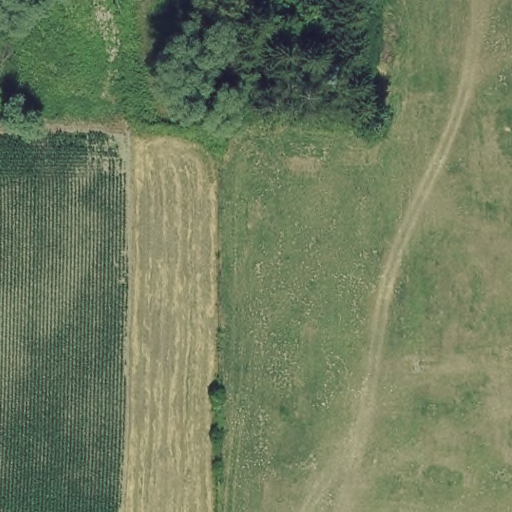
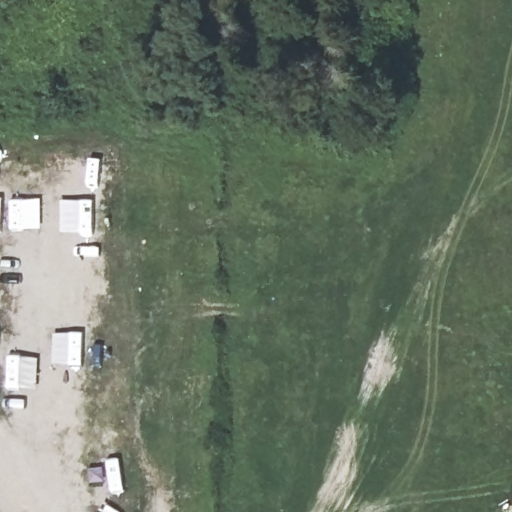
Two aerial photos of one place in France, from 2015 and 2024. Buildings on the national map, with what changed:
[]

